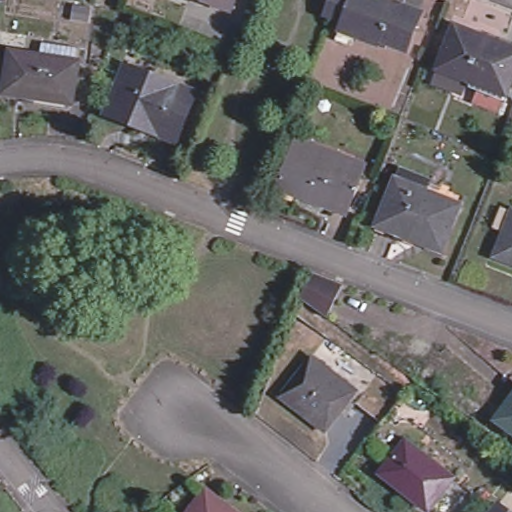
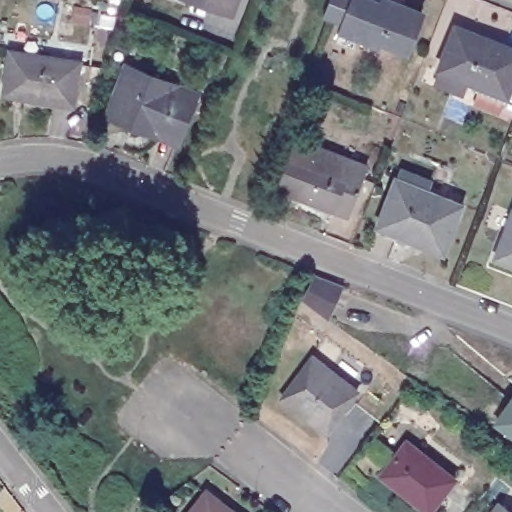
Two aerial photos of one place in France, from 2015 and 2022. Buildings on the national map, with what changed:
unchanged [(228,4),(216,0),(230,0),(228,4)]
unchanged [(400,7),(430,19),(416,56),(389,46),(387,50),(349,35),(352,28),(337,22),(333,20),(341,0),(368,0),(398,11),(400,7)]
unchanged [(501,89),(483,82),(480,87),(434,69),(450,27),(512,52),(512,66),(500,95),(499,94),(501,89)]
unchanged [(77,57),(71,99),(2,89),(8,47),(77,57)]
unchanged [(177,129),(147,116),(144,123),(107,109),(126,60),(195,88),(176,136),(175,136),(177,129)]
unchanged [(347,206),(334,201),(332,205),(277,184),(292,145),(347,167),(352,155),(365,160),(347,206)]
unchanged [(460,200),(442,246),(377,220),(395,174),(460,200)]
unchanged [(496,257),(505,234),(507,234),(512,220),(512,263),(496,257)]
unchanged [(342,278),(329,313),(300,293),(313,267),(342,278)]
unchanged [(312,361),(356,396),(325,436),(300,417),(305,410),(285,394),(312,361)]
unchanged [(496,426),(512,404),(512,437),(496,426)]
unchanged [(406,436),(454,473),(429,507),(380,469),(406,436)]
unchanged [(228,512),(192,512),(205,495),(228,512)]
unchanged [(512,510),(512,512),(490,512),(500,500),(512,510)]

